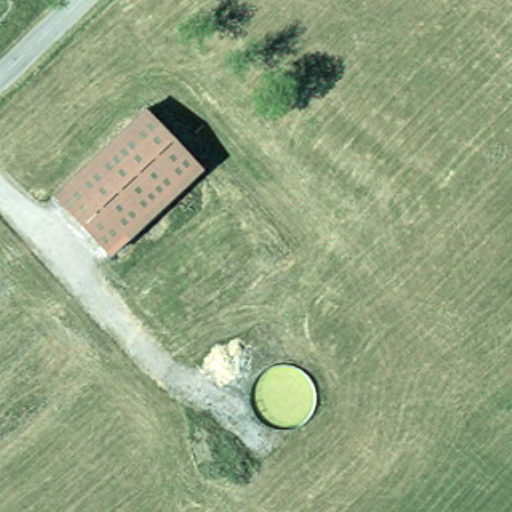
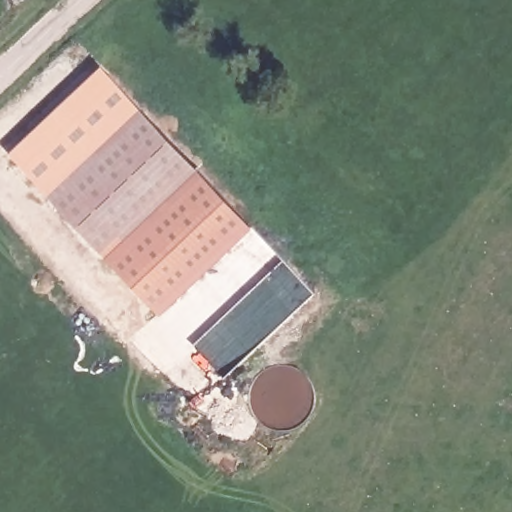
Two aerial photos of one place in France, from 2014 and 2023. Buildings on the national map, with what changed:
new [(140,112),(48,199),(7,154),(101,66),(140,112)]
unchanged [(103,257),(48,199),(140,112),(195,170),(103,257)]
new [(253,229),(160,316),(103,257),(195,170),(253,229)]

